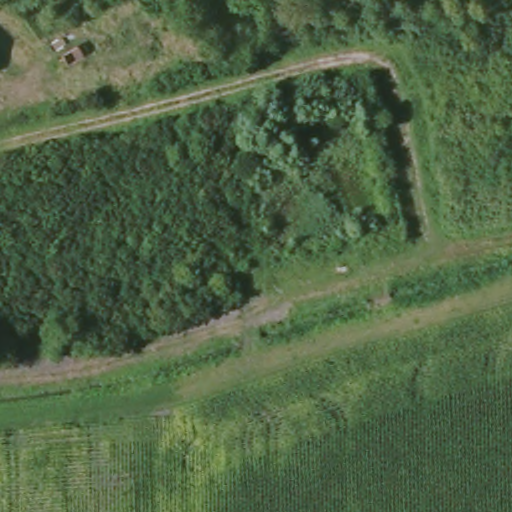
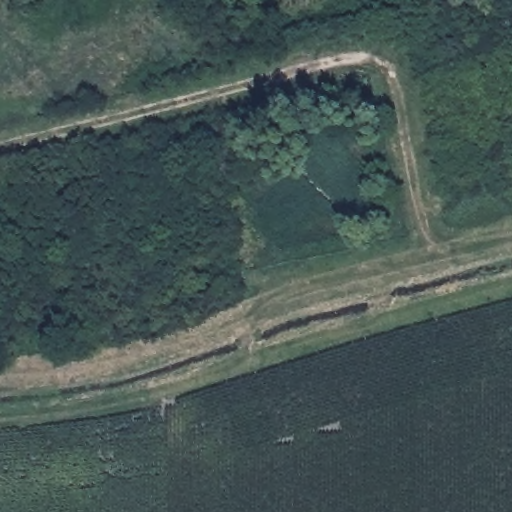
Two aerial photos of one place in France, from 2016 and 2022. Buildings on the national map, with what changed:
unchanged [(213,0),(205,6),(200,0),(213,0)]

